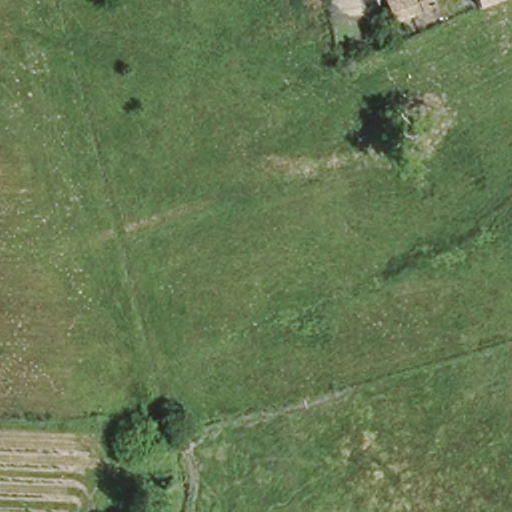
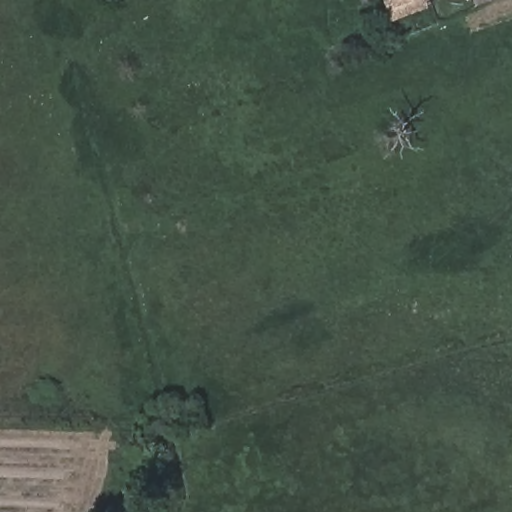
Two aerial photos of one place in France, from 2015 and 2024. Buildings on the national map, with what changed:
unchanged [(396,0),(431,0),(433,8),(393,22),(387,3),(396,0)]
unchanged [(482,9),(479,0),(506,0),(482,9)]

